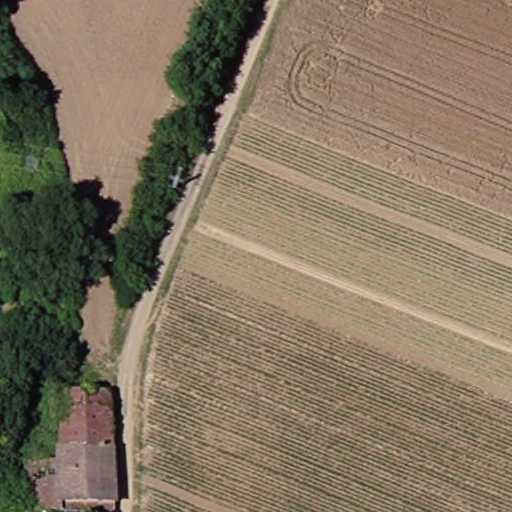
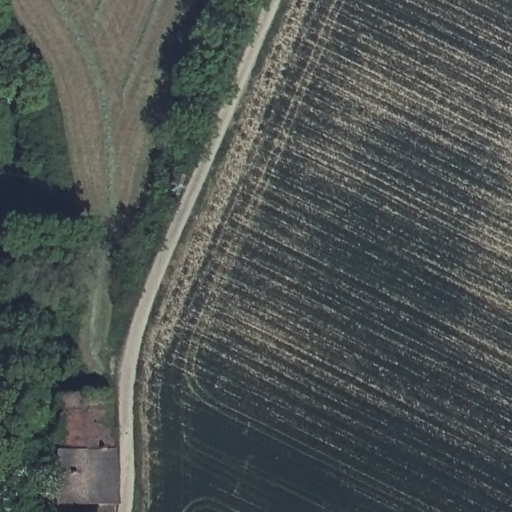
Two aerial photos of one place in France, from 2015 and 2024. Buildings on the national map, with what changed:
unchanged [(115,510),(111,511),(45,511),(40,512),(32,512),(30,438),(60,436),(59,395),(110,393),(115,510)]
unchanged [(45,511),(45,512),(40,512),(45,511)]

